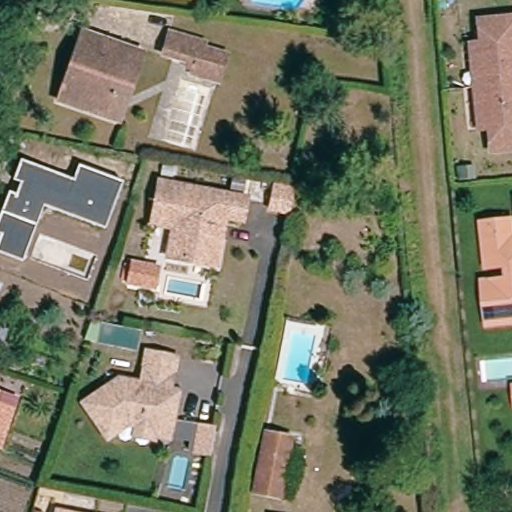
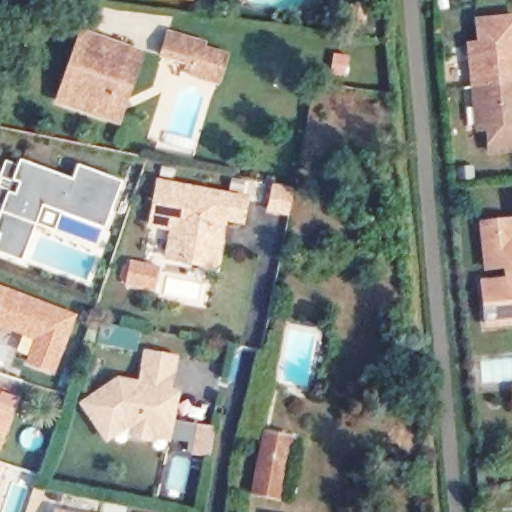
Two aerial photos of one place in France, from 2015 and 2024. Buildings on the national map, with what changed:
unchanged [(512,12),(512,144),(488,146),(485,114),(480,115),(473,47),(478,47),(475,15),(512,12)]
unchanged [(114,125),(102,120),(52,100),(61,80),(67,65),(79,38),(128,60),(139,64),(114,125)]
unchanged [(185,84),(188,71),(156,62),(164,40),(196,50),(194,57),(217,63),(214,76),(209,91),(185,84)]
unchanged [(122,183),(106,229),(42,207),(22,262),(0,254),(0,237),(1,235),(0,235),(0,214),(7,192),(17,196),(21,183),(12,179),(21,160),(72,180),(78,166),(122,183)]
unchanged [(168,233),(147,230),(154,188),(241,201),(239,222),(222,220),(217,242),(214,271),(179,265),(164,263),(168,233)]
unchanged [(291,218),(270,215),(275,190),(296,194),(291,218)]
unchanged [(482,329),(478,286),(505,284),(504,271),(483,273),(479,228),(507,226),(509,242),(512,242),(512,327),(511,327),(482,329)]
new [(132,269),(162,274),(159,293),(130,289),(132,269)]
new [(55,375),(23,364),(26,356),(16,352),(21,336),(0,329),(0,285),(77,313),(55,375)]
unchanged [(141,328),(136,354),(82,342),(91,318),(141,328)]
unchanged [(125,429),(116,427),(96,442),(72,407),(107,383),(131,388),(135,371),(137,356),(167,362),(164,377),(161,393),(168,395),(164,417),(158,441),(144,439),(142,444),(122,440),(125,429)]
unchanged [(511,410),(510,393),(512,393),(512,410),(511,410)]
unchanged [(291,440),(280,499),(252,494),(265,434),(291,440)]
new [(0,479),(0,463),(6,464),(0,479)]
unchanged [(55,511),(60,512),(55,512),(55,511)]

